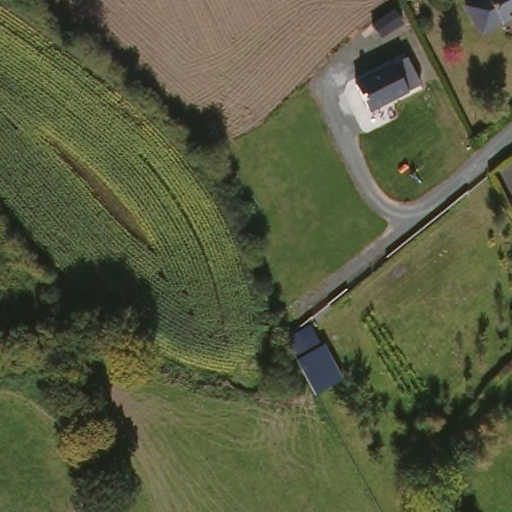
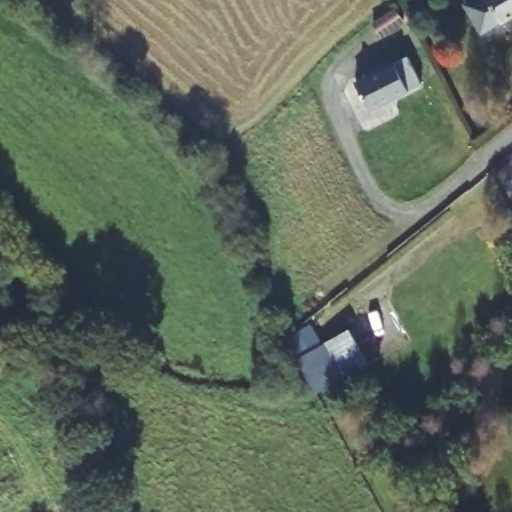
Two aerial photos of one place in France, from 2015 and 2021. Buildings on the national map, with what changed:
unchanged [(501,18),(481,27),(467,0),(512,0),(512,13),(501,18)]
unchanged [(369,111),(356,82),(407,55),(421,84),(369,111)]
unchanged [(344,378),(315,390),(296,353),(323,342),(344,378)]

